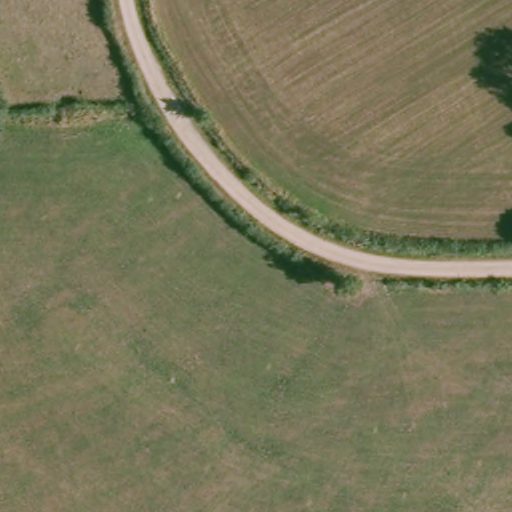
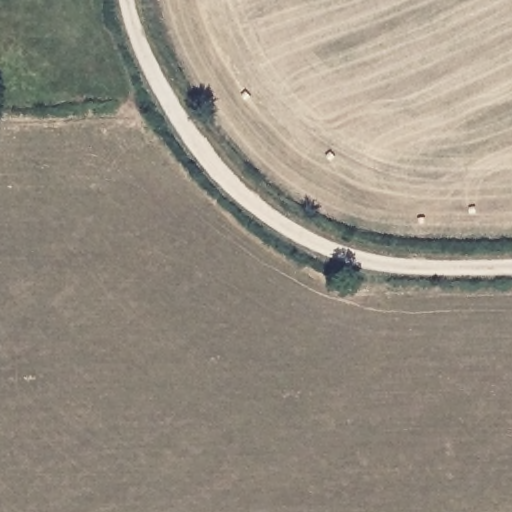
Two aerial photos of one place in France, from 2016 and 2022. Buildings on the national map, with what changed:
[]

